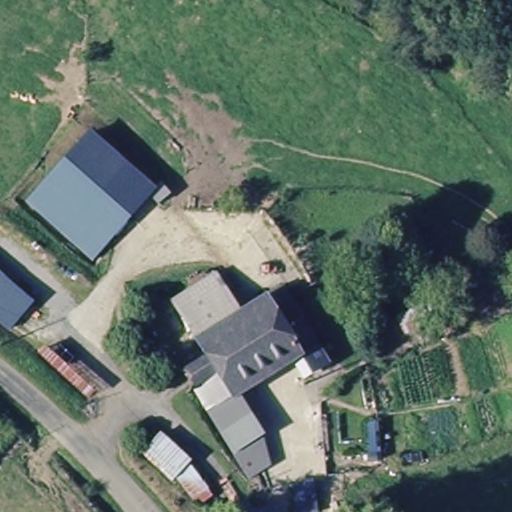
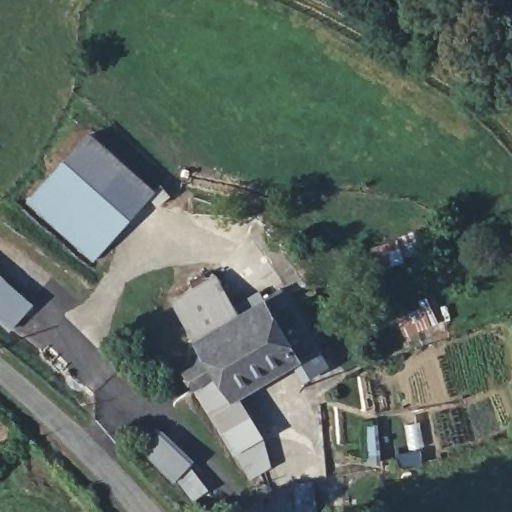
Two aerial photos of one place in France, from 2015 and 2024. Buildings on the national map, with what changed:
unchanged [(100,254),(37,197),(100,128),(162,185),(100,254)]
unchanged [(427,222),(435,242),(395,258),(400,272),(376,281),(366,248),(427,222)]
unchanged [(34,306),(12,330),(0,319),(0,277),(34,306)]
unchanged [(177,308),(222,280),(242,322),(202,349),(177,308)]
unchanged [(320,348),(312,354),(307,345),(296,352),(270,309),(267,303),(286,290),(297,310),(320,348)]
unchanged [(397,314),(420,307),(429,329),(407,337),(397,314)]
unchanged [(300,361),(239,399),(215,416),(190,376),(210,364),(202,349),(242,322),(270,309),(296,352),(307,345),(312,354),(300,361)]
unchanged [(253,477),(240,456),(215,416),(239,399),(262,442),(270,467),(253,477)]
unchanged [(221,493),(202,512),(196,512),(140,455),(167,435),(221,493)]
unchanged [(303,481),(321,485),(322,512),(303,512),(303,481)]

